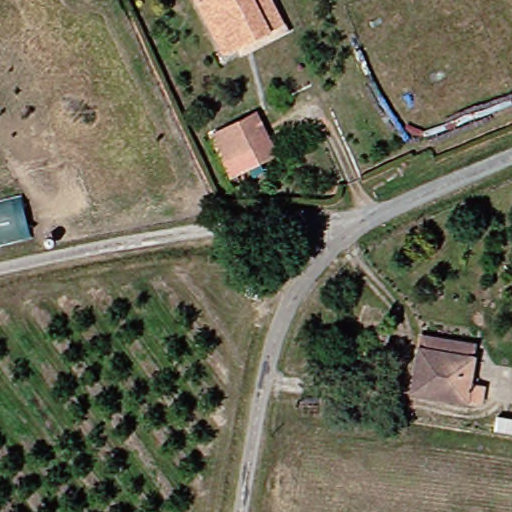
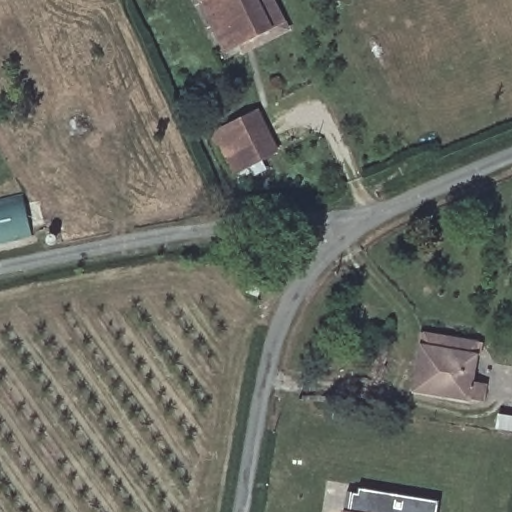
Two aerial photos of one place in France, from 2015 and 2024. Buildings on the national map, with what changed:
unchanged [(211,0),(270,0),(283,27),(236,50),(211,0)]
unchanged [(261,115),(281,153),(235,175),(215,137),(261,115)]
unchanged [(33,235),(0,243),(0,204),(25,198),(33,235)]
unchanged [(482,399),(411,386),(419,340),(421,330),(481,342),(479,353),(474,379),(486,381),(482,399)]
unchanged [(512,428),(504,427),(506,417),(512,418),(512,428)]
new [(346,489),(352,490),(357,491),(358,486),(439,499),(437,512),(343,512),(343,510),(346,489)]

